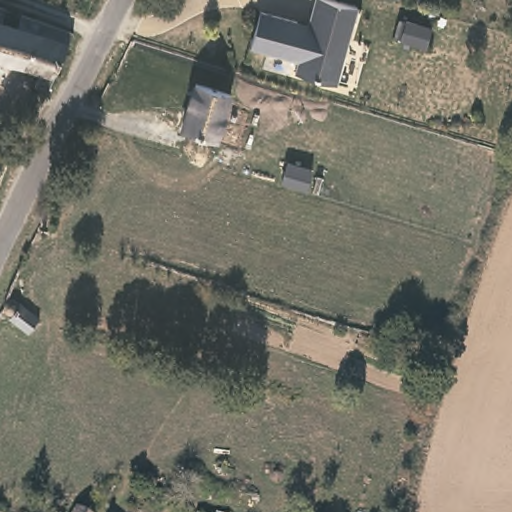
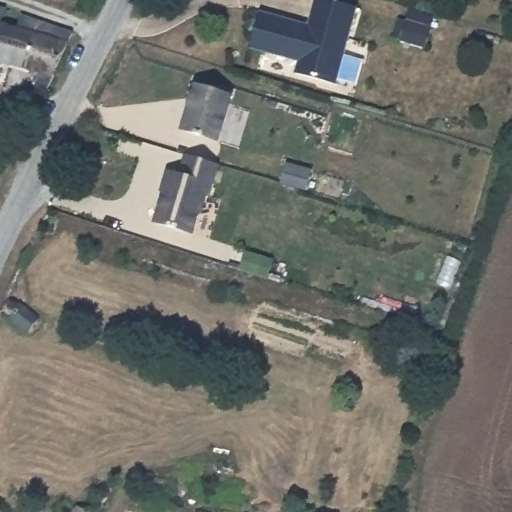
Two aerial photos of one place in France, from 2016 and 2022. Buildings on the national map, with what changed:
unchanged [(338,86),(297,75),(300,63),(252,50),(261,15),(310,27),(316,0),(325,0),(358,9),(338,86)]
unchanged [(1,26),(17,30),(21,20),(73,35),(47,90),(37,86),(41,70),(0,58),(0,8),(5,10),(1,26)]
unchanged [(220,141),(180,131),(194,84),(235,95),(220,141)]
new [(169,169),(181,173),(187,154),(220,164),(210,199),(207,199),(204,212),(200,210),(194,235),(155,222),(169,169)]
unchanged [(39,316),(27,330),(12,315),(2,305),(11,297),(16,296),(39,316)]
unchanged [(96,512),(72,512),(78,502),(96,512)]
unchanged [(220,512),(199,512),(201,505),(220,512)]

